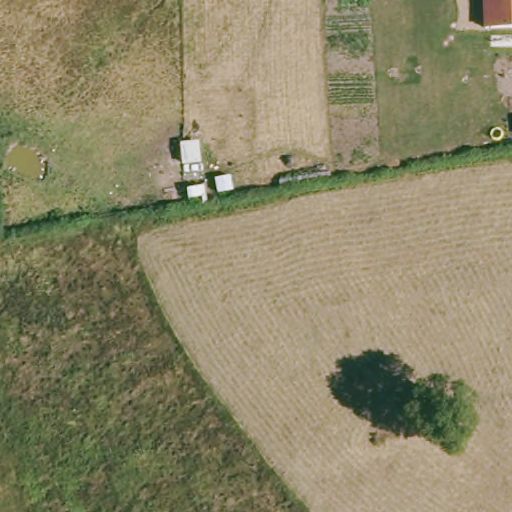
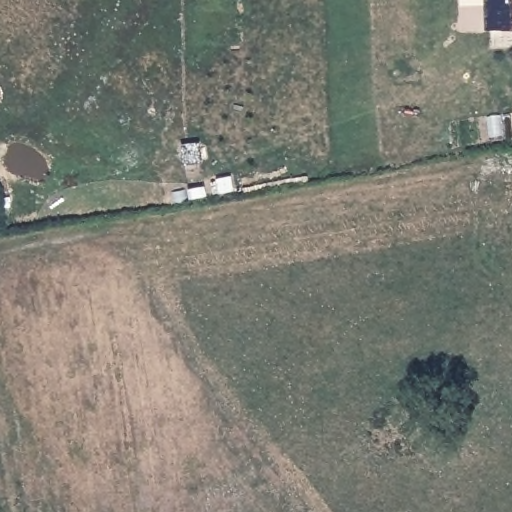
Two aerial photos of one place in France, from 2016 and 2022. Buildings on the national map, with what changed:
unchanged [(481,0),(512,0),(512,27),(482,29),(481,0)]

